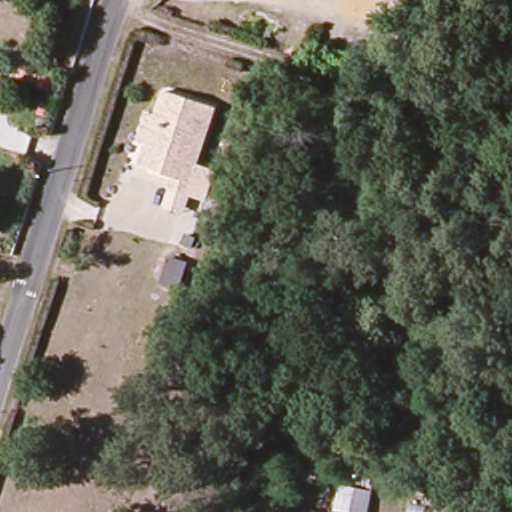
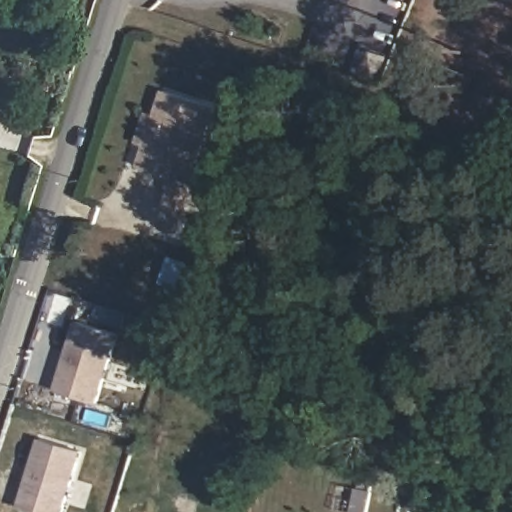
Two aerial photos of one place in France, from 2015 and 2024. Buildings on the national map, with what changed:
unchanged [(215,103),(197,159),(204,161),(192,194),(169,185),(172,175),(151,169),(130,161),(146,110),(157,115),(165,87),(215,103)]
new [(75,324),(116,336),(95,405),(55,393),(75,324)]
new [(81,452),(63,512),(30,512),(20,509),(41,440),(81,452)]
unchanged [(368,512),(331,512),(325,511),(330,485),(371,491),(368,512)]

